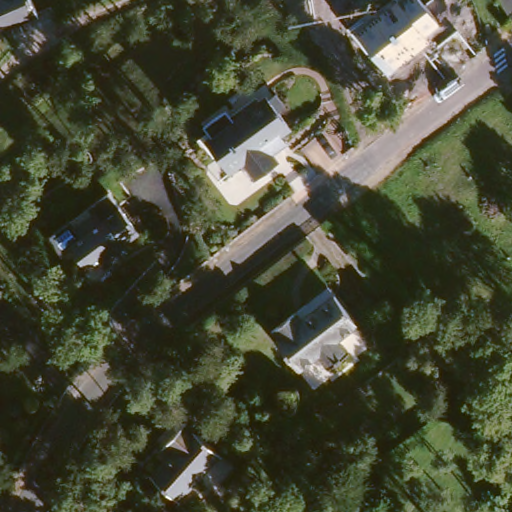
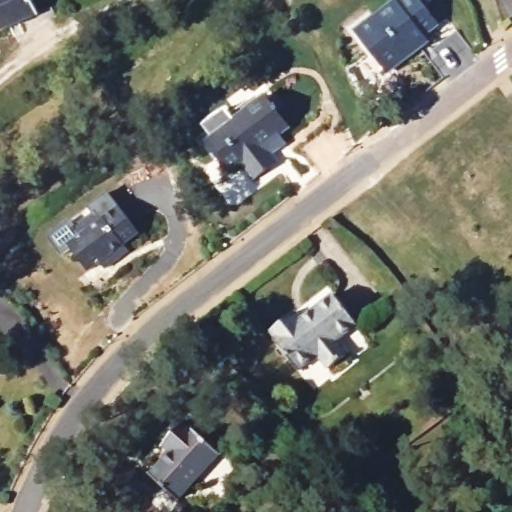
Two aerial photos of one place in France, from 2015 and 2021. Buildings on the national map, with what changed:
unchanged [(3,36),(0,29),(0,0),(33,0),(38,10),(3,36)]
unchanged [(423,0),(443,27),(429,40),(432,44),(389,76),(349,27),(388,0),(423,0)]
unchanged [(266,172),(250,182),(239,167),(226,175),(216,159),(204,142),(211,138),(204,127),(223,114),(230,125),(255,107),(265,101),(268,105),(276,100),(283,110),(275,115),(287,132),(278,139),(284,148),(270,158),(274,166),(266,172)]
unchanged [(105,212),(112,221),(129,207),(148,231),(126,250),(131,257),(115,268),(110,262),(98,272),(79,247),(91,237),(84,229),(105,212)]
unchanged [(297,305),(304,313),(337,289),(360,319),(340,334),(351,348),(329,365),(319,351),(300,365),(277,334),(280,332),(274,323),(297,305)]
unchanged [(172,452),(164,443),(184,422),(219,453),(176,499),(151,476),(172,452)]

